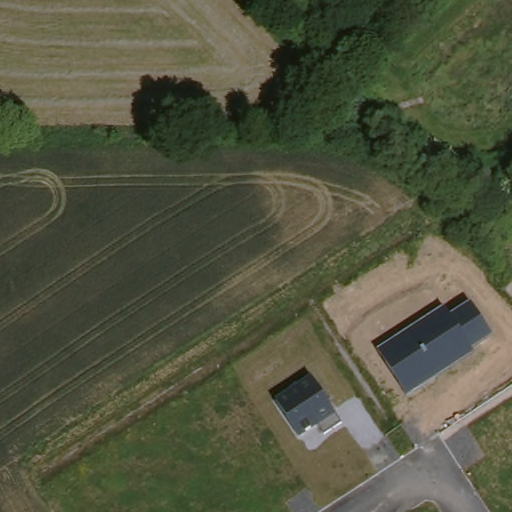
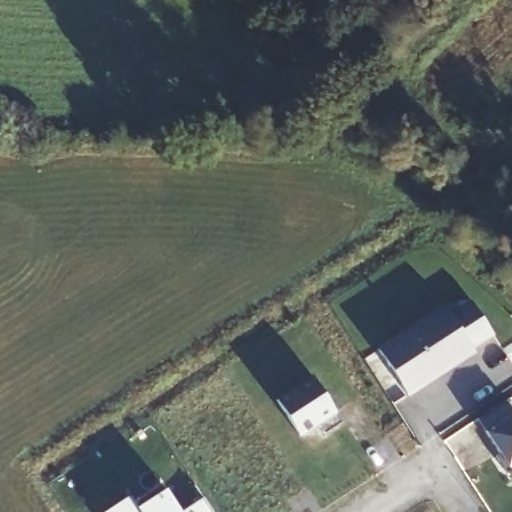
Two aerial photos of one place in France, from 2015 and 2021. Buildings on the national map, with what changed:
unchanged [(443,306),(449,315),(470,299),(493,333),(472,348),(474,352),(407,395),(378,348),(443,306)]
unchanged [(312,376),(336,414),(341,421),(323,433),(318,425),(299,437),(276,399),(312,376)]
new [(479,418),(507,400),(512,407),(512,470),(508,472),(497,453),(499,451),(487,431),(479,418)]
new [(214,512),(194,512),(193,511),(193,512),(106,512),(130,496),(138,508),(140,497),(161,483),(166,489),(181,511),(203,496),(214,512)]

